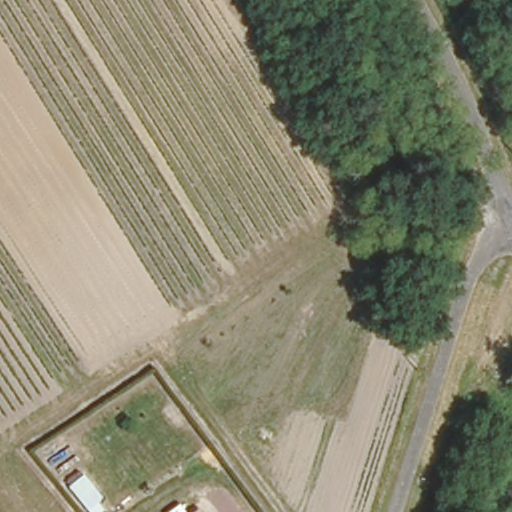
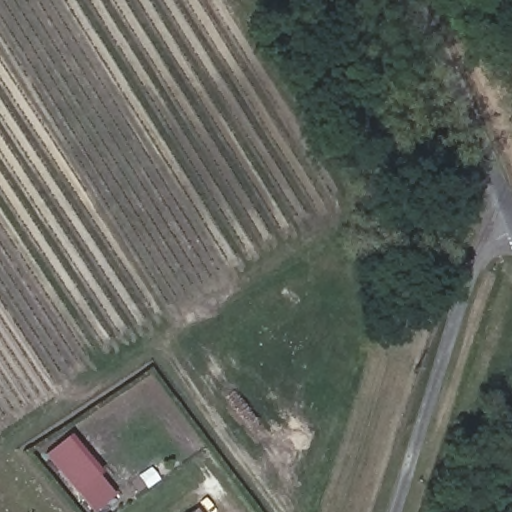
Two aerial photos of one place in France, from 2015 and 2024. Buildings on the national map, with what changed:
new [(116,496),(97,512),(93,512),(44,456),(70,434),(103,472),(99,476),(116,496)]
unchanged [(198,509),(200,512),(194,512),(198,509)]

